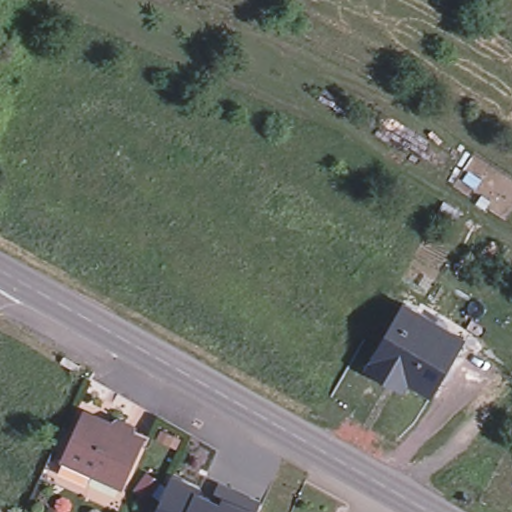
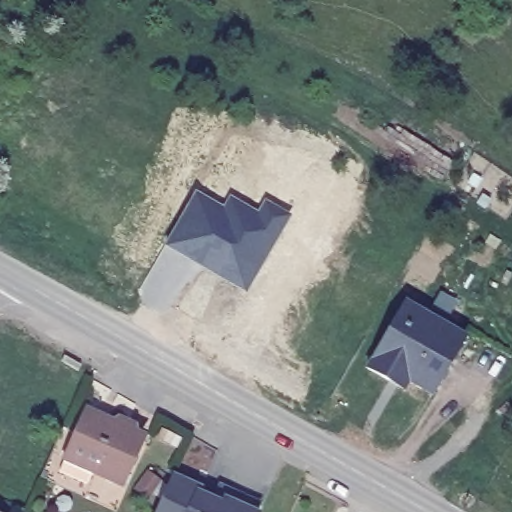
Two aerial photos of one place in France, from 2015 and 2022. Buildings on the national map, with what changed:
new [(224,204),(229,195),(259,210),(266,199),(291,214),(248,290),(166,245),(194,188),(224,204)]
unchanged [(462,336),(461,338),(429,393),(405,379),(401,388),(364,366),(402,302),(402,301),(462,336)]
unchanged [(93,404),(122,417),(121,424),(128,427),(129,425),(149,434),(129,479),(128,483),(98,470),(93,481),(64,468),(71,452),(93,404)]
unchanged [(198,497),(196,502),(209,508),(216,493),(259,512),(157,512),(169,485),(198,497)]
unchanged [(0,512),(0,507),(9,512),(0,512)]

